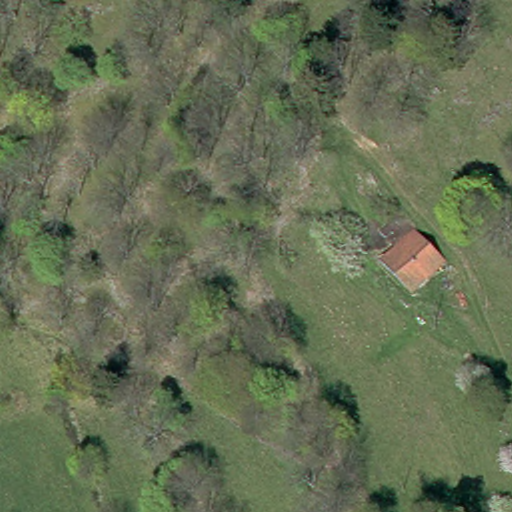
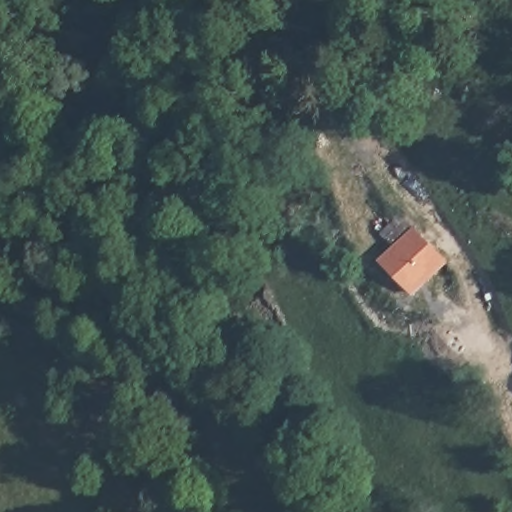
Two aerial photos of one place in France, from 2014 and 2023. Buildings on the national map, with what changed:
unchanged [(411,294),(380,264),(410,234),(441,263),(411,294)]

